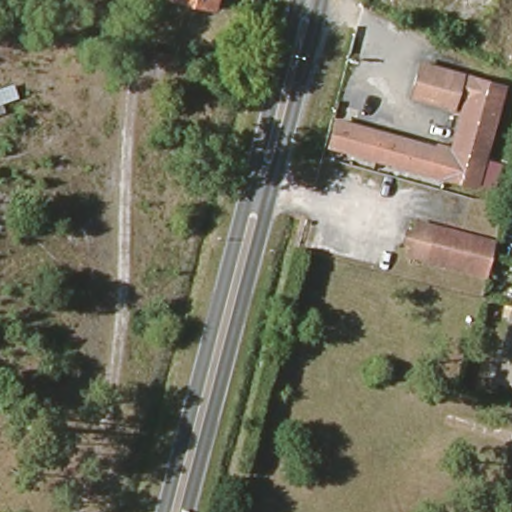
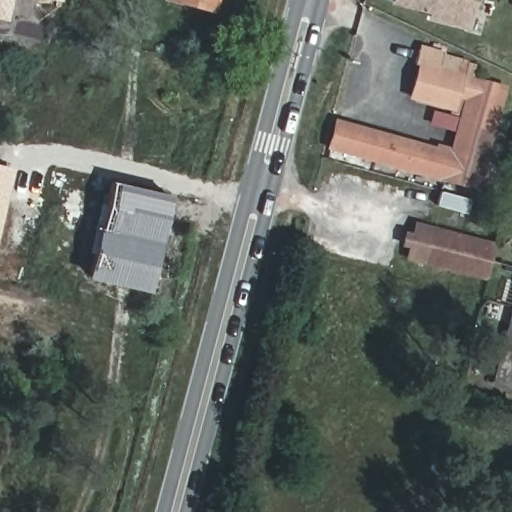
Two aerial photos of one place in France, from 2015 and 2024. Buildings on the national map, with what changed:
new [(0,19),(0,0),(13,0),(8,21),(0,19)]
unchanged [(197,0),(215,0),(214,5),(197,0)]
new [(428,14),(391,4),(392,0),(476,0),(469,30),(427,19),(428,14)]
unchanged [(421,59),(504,82),(477,182),(329,142),(337,116),(436,144),(437,141),(452,145),(463,106),(453,103),(412,92),(421,59)]
new [(0,166),(14,169),(0,230),(0,166)]
new [(112,181),(173,196),(149,293),(86,278),(112,181)]
unchanged [(495,244),(486,278),(408,258),(411,247),(404,245),(407,232),(414,235),(417,224),(495,244)]
unchanged [(509,351),(512,341),(512,351),(509,351)]
unchanged [(499,388),(509,351),(512,351),(512,391),(499,388)]

